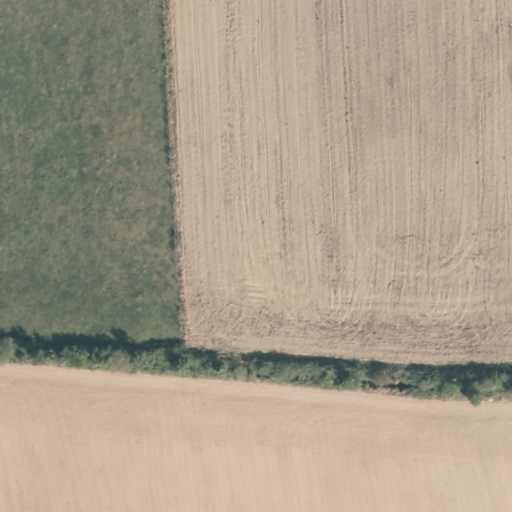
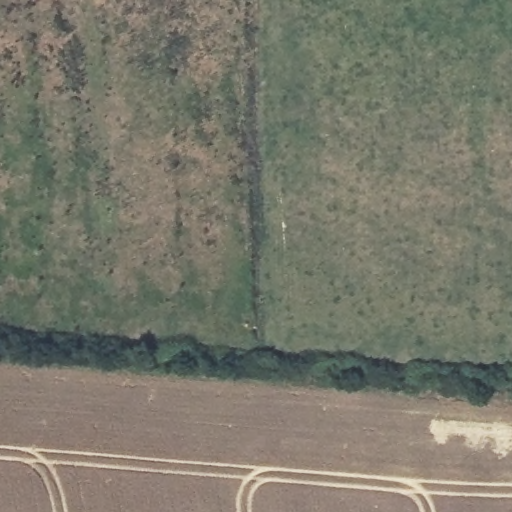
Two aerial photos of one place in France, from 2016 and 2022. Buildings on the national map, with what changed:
[]

